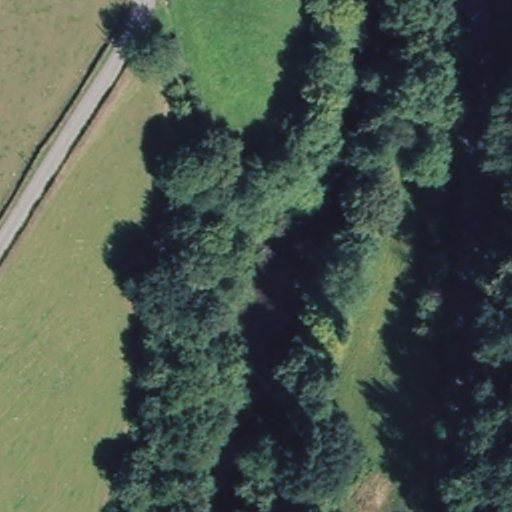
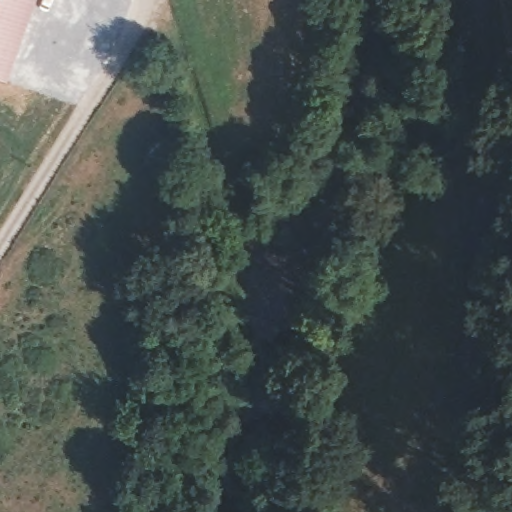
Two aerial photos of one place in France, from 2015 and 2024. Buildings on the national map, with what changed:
new [(35,0),(7,79),(0,77),(0,0),(35,0)]

